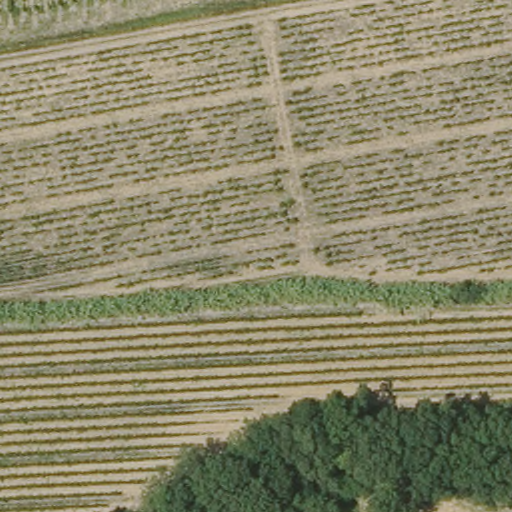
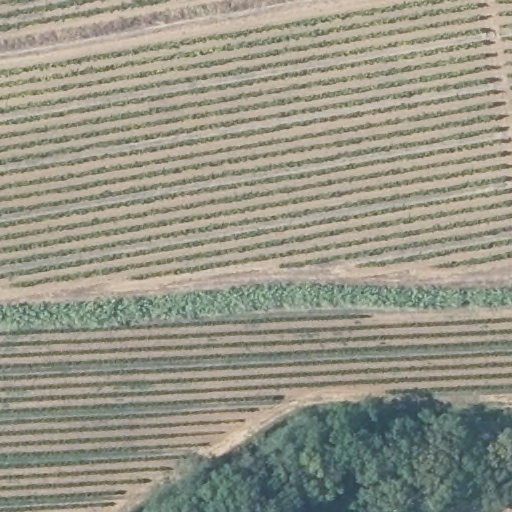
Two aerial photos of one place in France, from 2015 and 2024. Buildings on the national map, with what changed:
unchanged [(406,512),(393,487),(420,474),(436,502),(417,512),(406,512)]

